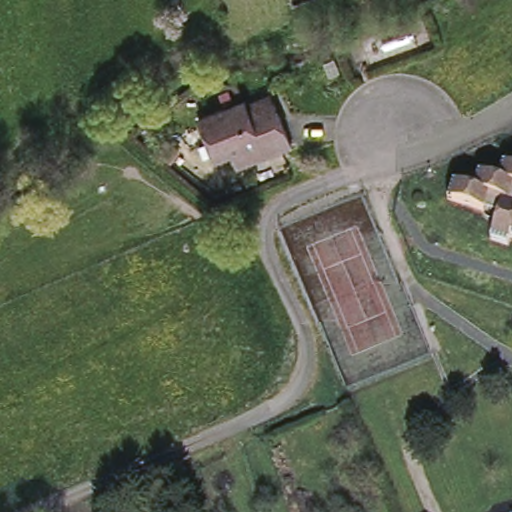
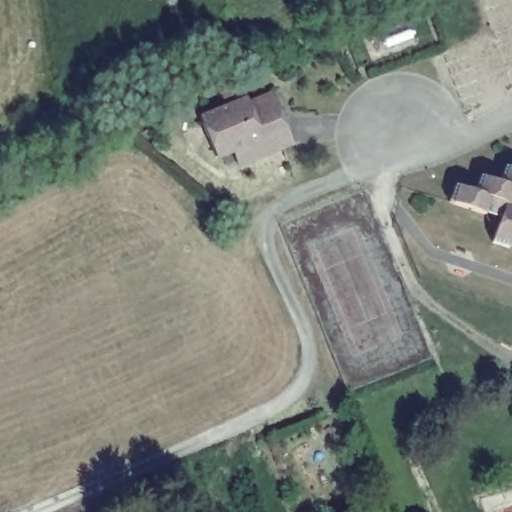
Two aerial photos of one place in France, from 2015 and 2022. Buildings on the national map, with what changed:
unchanged [(235,151),(217,158),(201,118),(247,99),(252,110),(276,100),(282,116),(293,144),(268,154),(240,165),(235,151)]
unchanged [(475,187),(480,171),(500,178),(505,162),(512,164),(512,236),(510,242),(492,237),(500,214),(450,197),(455,181),(475,187)]

